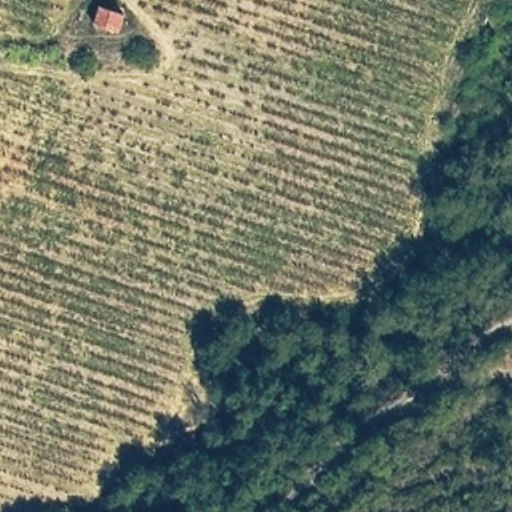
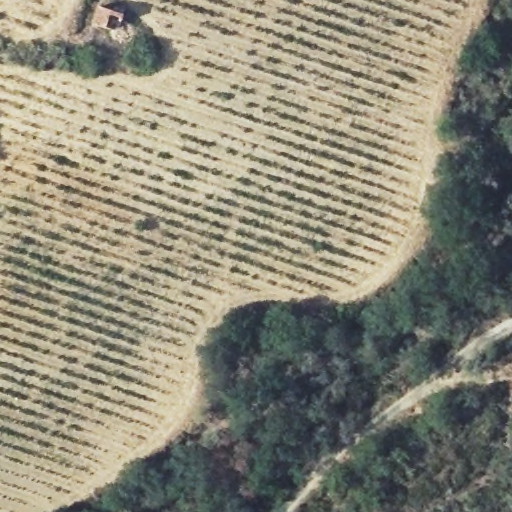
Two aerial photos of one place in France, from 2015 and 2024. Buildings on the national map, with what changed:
unchanged [(95,7),(120,14),(117,33),(91,24),(95,7)]

